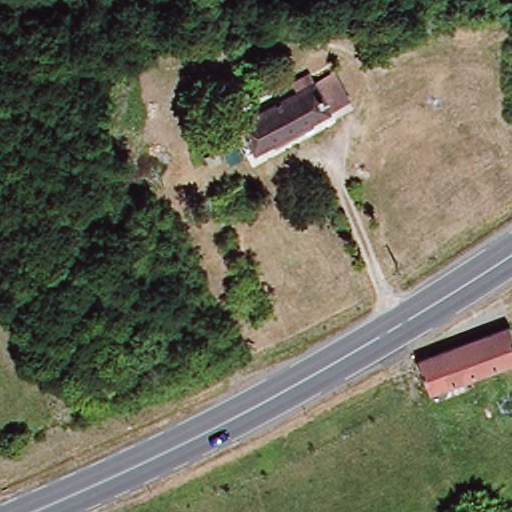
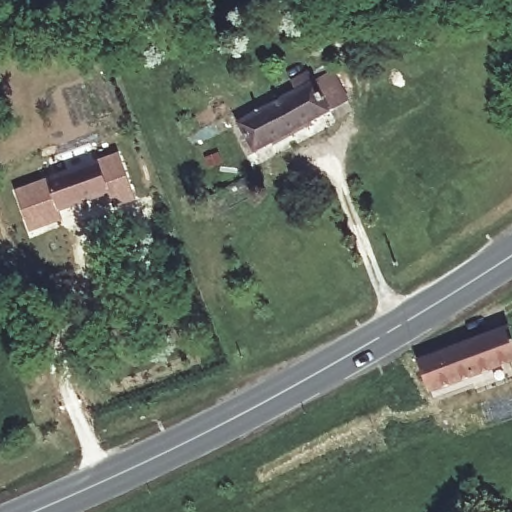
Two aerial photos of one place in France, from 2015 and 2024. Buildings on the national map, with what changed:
unchanged [(253,115),(308,87),(305,81),(316,75),(319,82),(342,70),(358,101),(269,146),(264,138),(229,156),(218,135),(243,121),(239,115),(250,110),(253,115)]
demolished [(369,102),(361,87),(383,77),(389,92),(404,85),(416,107),(366,133),(354,110),(369,102)]
new [(119,152),(136,198),(114,205),(109,191),(59,210),(63,219),(29,231),(27,224),(15,191),(119,152)]
unchanged [(414,362),(510,325),(512,331),(512,360),(426,393),(414,362)]

